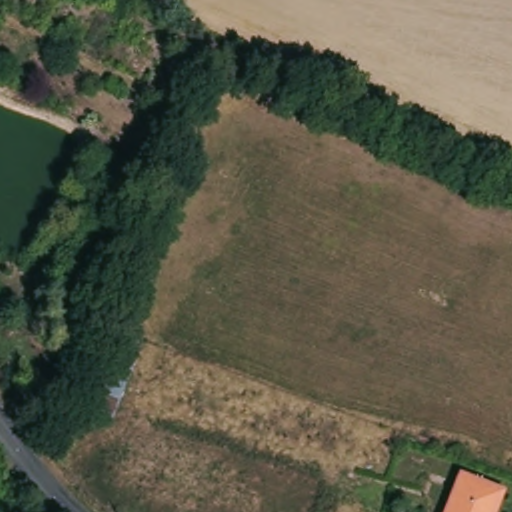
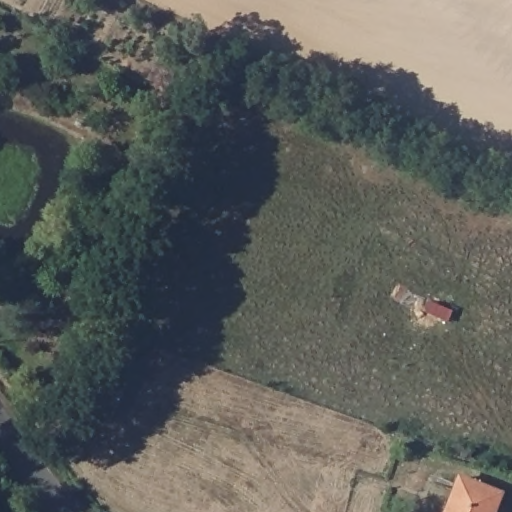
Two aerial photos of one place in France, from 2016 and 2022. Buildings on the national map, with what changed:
unchanged [(458,476),(502,488),(494,512),(445,512),(458,476)]

